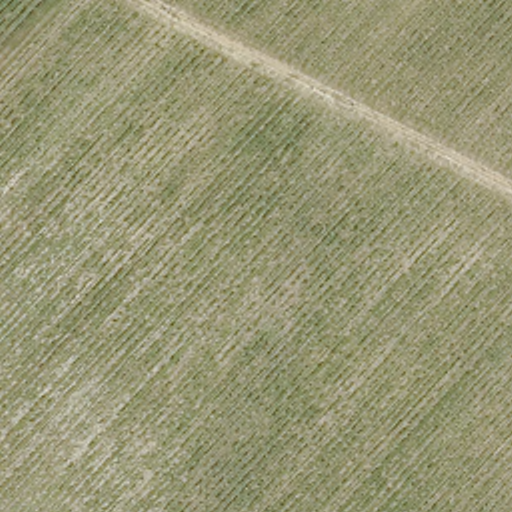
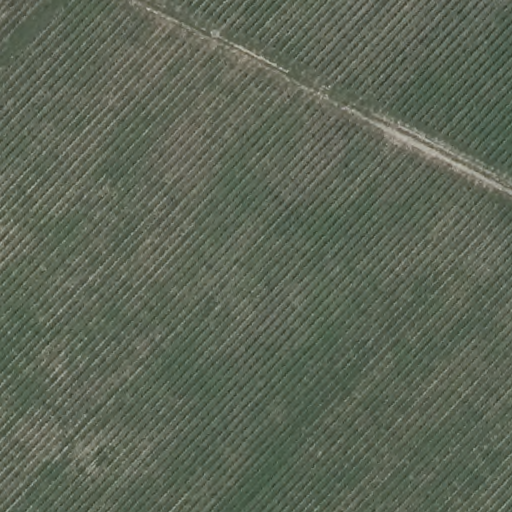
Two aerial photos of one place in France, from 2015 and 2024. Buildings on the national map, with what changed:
[]

